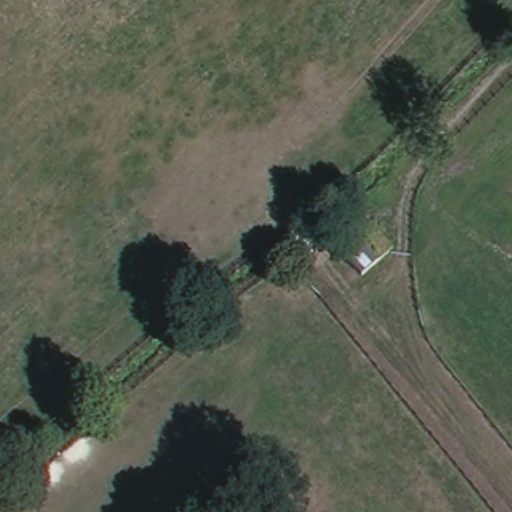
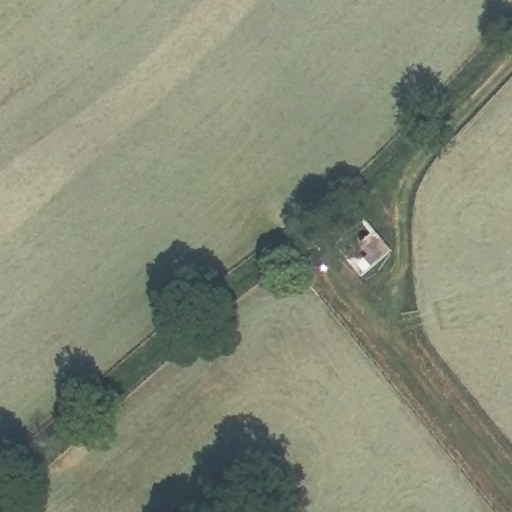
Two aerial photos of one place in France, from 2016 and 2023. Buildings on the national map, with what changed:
unchanged [(396,249),(362,273),(331,238),(365,214),(396,249)]

